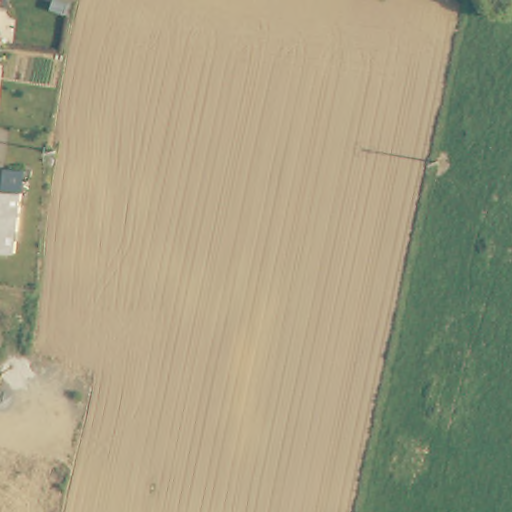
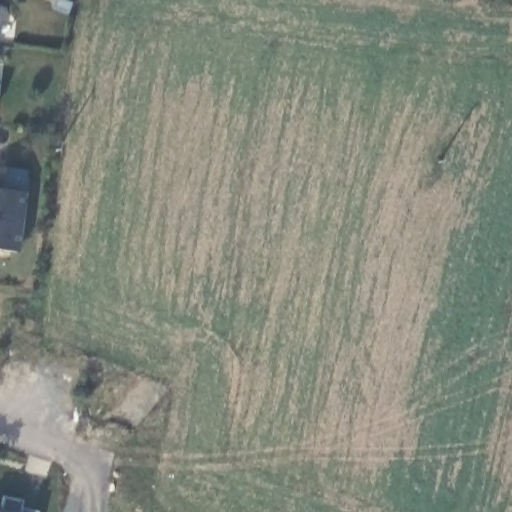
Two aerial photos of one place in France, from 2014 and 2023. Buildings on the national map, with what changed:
unchanged [(6,55),(0,54),(0,0),(9,0),(7,14),(11,15),(6,55)]
unchanged [(8,55),(10,55),(8,72),(0,71),(0,54),(6,55),(8,55)]
unchanged [(7,117),(0,116),(0,96),(10,97),(7,117)]
unchanged [(20,176),(40,179),(37,201),(30,260),(0,257),(0,197),(17,199),(20,176)]
new [(0,511),(3,511),(6,498),(22,501),(20,510),(31,512),(0,512),(0,511)]

